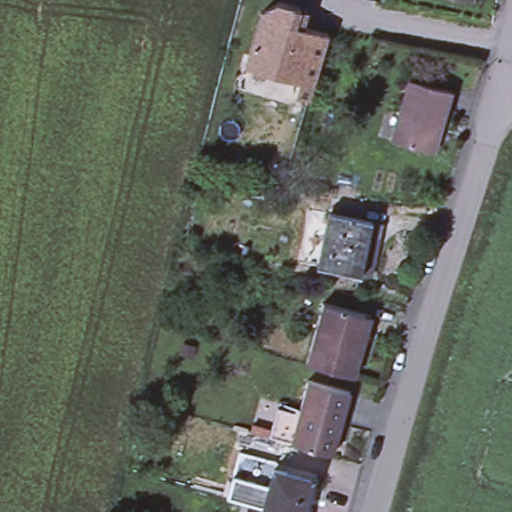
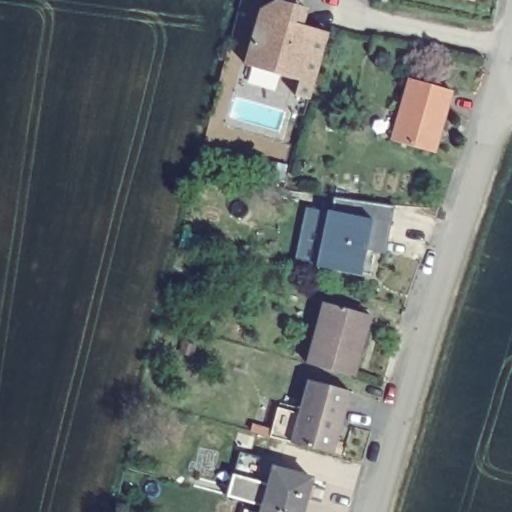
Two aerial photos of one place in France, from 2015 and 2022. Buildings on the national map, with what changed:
unchanged [(280,3),(299,8),(294,25),(327,34),(320,60),(307,102),(294,98),(299,84),(245,69),(262,13),(280,3)]
unchanged [(432,150),(396,141),(412,79),(454,89),(444,125),(437,152),(432,150)]
unchanged [(322,221),(325,210),(377,222),(365,278),(313,267),(315,257),(307,255),(314,219),(322,221)]
unchanged [(356,379),(350,377),(319,369),(309,366),(325,305),(366,316),(372,318),(356,379)]
unchanged [(279,409),(299,415),(309,381),(351,393),(335,456),(291,444),(291,443),(271,437),(279,409)]
unchanged [(315,477),(306,512),(290,512),(265,505),(276,466),(315,477)]
unchanged [(263,512),(265,505),(290,512),(263,512)]

